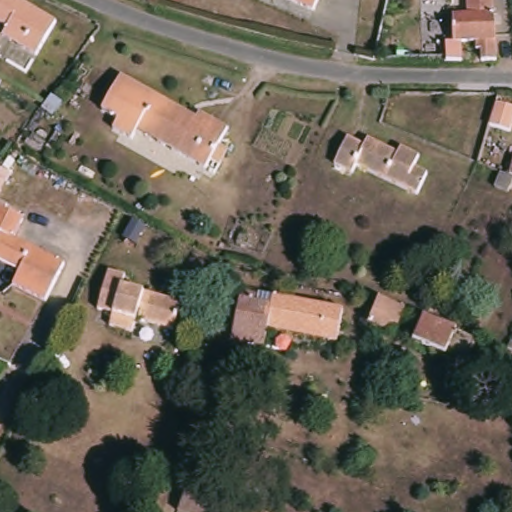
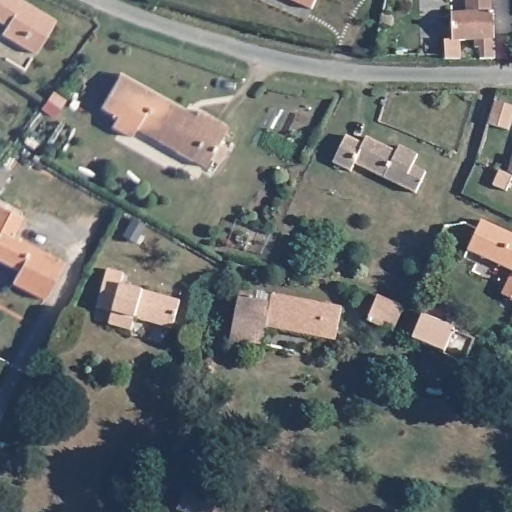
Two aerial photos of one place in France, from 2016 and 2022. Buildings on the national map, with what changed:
unchanged [(0,28),(3,22),(0,21),(0,0),(25,0),(52,17),(32,51),(0,31),(0,28)]
unchanged [(310,6),(297,0),(312,0),(310,6)]
unchanged [(444,39),(450,39),(450,12),(465,12),(465,0),(492,0),(492,9),(493,10),(494,56),(480,56),(479,47),(474,47),(473,39),(459,39),(460,57),(443,57),(444,39)]
unchanged [(128,135),(109,123),(113,115),(99,107),(119,72),(182,111),(180,117),(188,121),(195,112),(222,129),(215,141),(222,146),(213,161),(206,156),(199,166),(153,138),(133,126),(128,135)]
unchanged [(361,141),(365,135),(396,150),(398,145),(416,154),(412,165),(423,171),(414,190),(354,162),(351,168),(333,160),(346,134),(361,141)]
unchanged [(504,168),(511,150),(512,150),(512,171),(507,184),(494,179),(499,166),(504,168)]
unchanged [(8,233),(58,260),(38,297),(7,279),(14,266),(0,258),(0,204),(18,214),(8,233)]
new [(481,221),(512,234),(512,301),(501,296),(511,272),(467,250),(481,221)]
unchanged [(123,274),(120,285),(177,304),(168,330),(133,318),(129,330),(107,323),(110,311),(96,305),(107,269),(123,274)]
unchanged [(342,306),(335,338),(266,325),(261,343),(229,336),(237,294),(246,296),(248,287),(259,290),(272,292),(273,292),(342,306)]
unchanged [(405,305),(393,332),(366,321),(379,294),(405,305)]
unchanged [(444,349),(442,352),(411,338),(423,312),(455,326),(454,328),(474,337),(465,358),(444,349)]
unchanged [(374,382),(373,388),(367,387),(368,381),(374,382)]
unchanged [(177,512),(186,488),(221,496),(215,512),(177,512)]

